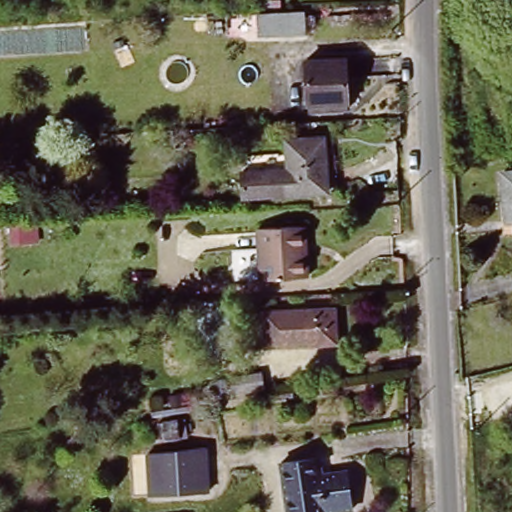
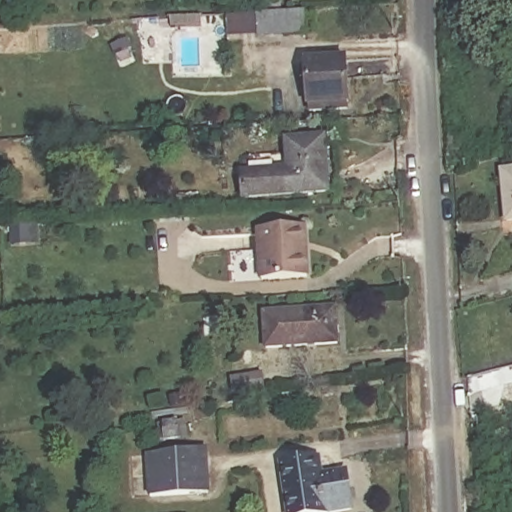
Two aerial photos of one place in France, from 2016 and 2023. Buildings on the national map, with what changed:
unchanged [(286,38),(284,14),(330,12),(332,36),(286,38)]
unchanged [(315,108),(315,99),(312,55),(352,53),(355,96),(355,105),(315,108)]
unchanged [(330,188),(245,193),(244,170),(294,166),(291,139),(325,136),(330,188)]
unchanged [(512,168),(512,202),(510,168),(512,168)]
unchanged [(264,229),(302,227),(310,226),(311,253),(312,276),(267,278),(264,229)]
unchanged [(272,312),(343,310),(344,337),(273,339),(272,312)]
unchanged [(247,395),(245,377),(275,373),(277,390),(247,395)]
unchanged [(214,489),(154,493),(152,446),(212,440),(214,489)]
unchanged [(286,458),(320,452),(324,469),(335,468),(350,466),(355,504),(301,512),(295,512),(286,458)]

